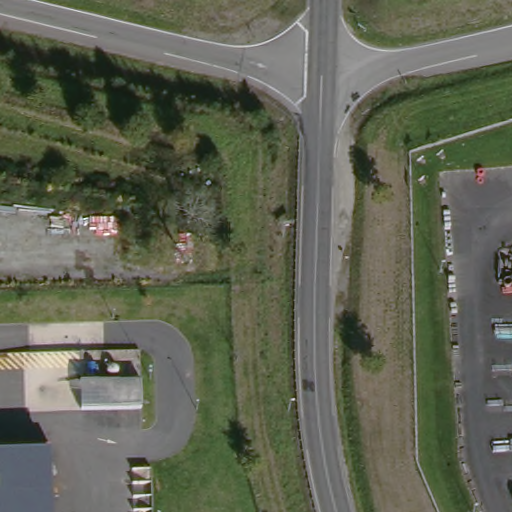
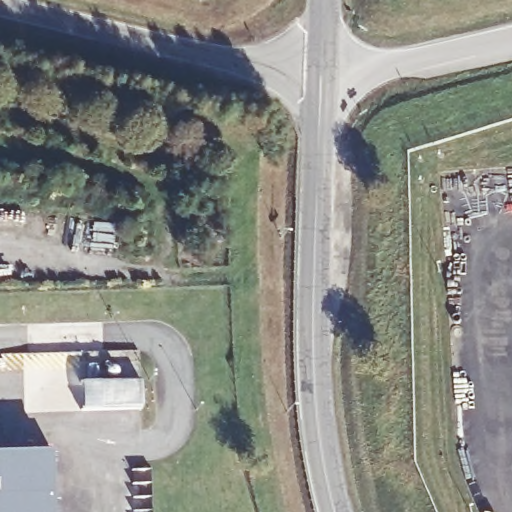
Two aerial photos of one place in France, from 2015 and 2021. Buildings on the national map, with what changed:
unchanged [(54,512),(0,512),(0,447),(50,445),(54,512)]

